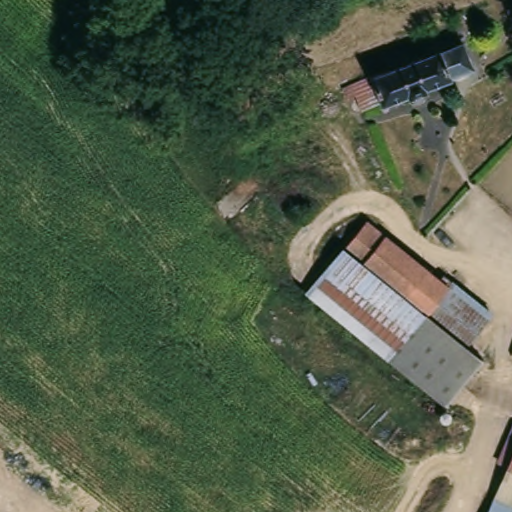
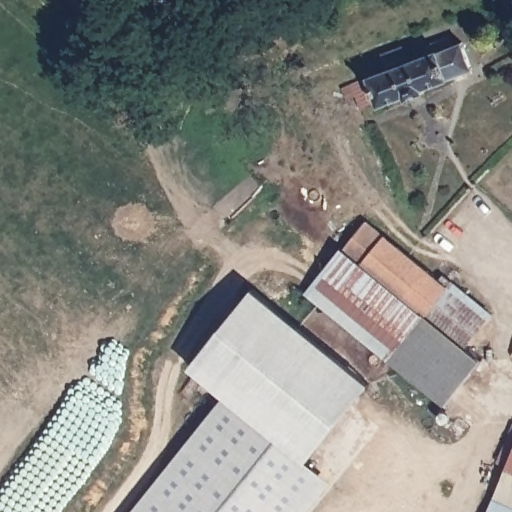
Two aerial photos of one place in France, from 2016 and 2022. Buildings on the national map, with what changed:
unchanged [(512,6),(510,0),(512,0),(512,6)]
unchanged [(439,56),(437,50),(452,45),(453,52),(462,50),(471,75),(421,92),(422,97),(405,101),(404,95),(381,102),(372,78),(439,56)]
unchanged [(452,282),(458,280),(494,312),(467,344),(349,244),(360,231),(363,227),(372,216),(416,252),(452,282)]
unchanged [(441,404),(309,292),(349,244),(467,344),(482,357),(441,404)]
new [(224,395),(189,368),(254,289),(371,382),(307,462),(224,395)]
new [(512,354),(512,356),(511,355),(512,354)]
new [(306,512),(130,512),(224,395),(307,462),(330,482),(306,512)]
unchanged [(512,512),(489,512),(495,499),(504,473),(512,453),(512,512)]

